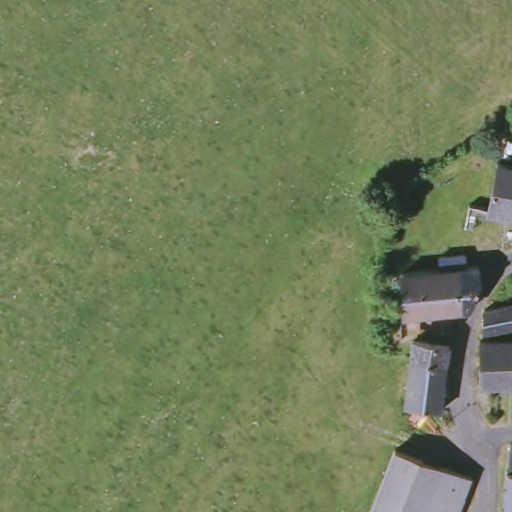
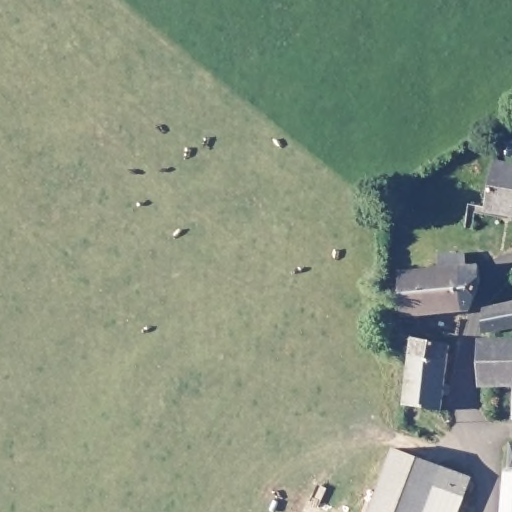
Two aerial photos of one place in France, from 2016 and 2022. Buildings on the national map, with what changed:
unchanged [(495,211),(501,165),(512,167),(512,214),(495,211)]
unchanged [(467,270),(482,267),(482,268),(488,286),(477,310),(410,319),(405,277),(441,272),(440,256),(465,252),(467,270)]
unchanged [(495,334),(491,317),(493,314),(512,310),(512,331),(495,334)]
unchanged [(443,411),(405,406),(405,405),(403,403),(409,353),(411,337),(453,343),(443,411)]
unchanged [(482,389),(480,343),(512,341),(512,388),(482,389)]
unchanged [(500,512),(507,438),(512,439),(512,512),(500,512)]
unchanged [(463,472),(474,476),(460,512),(368,512),(391,448),(463,472)]

